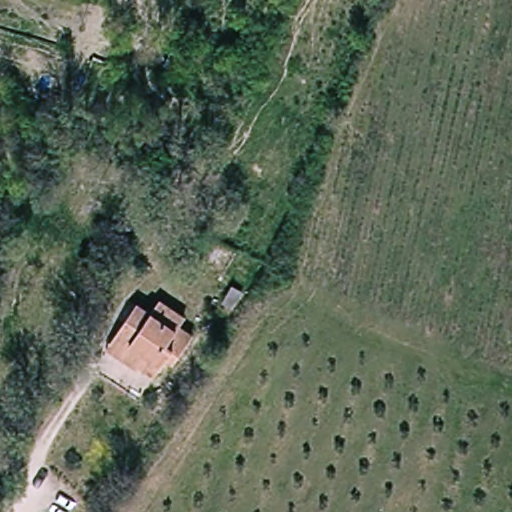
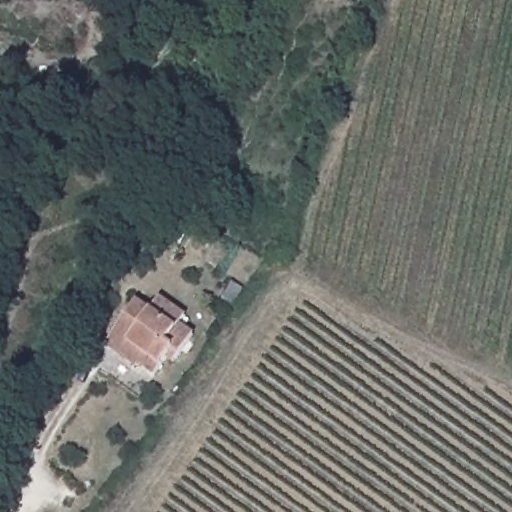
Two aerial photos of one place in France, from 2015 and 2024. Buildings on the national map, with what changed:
unchanged [(113,343),(126,320),(136,304),(151,313),(160,301),(184,316),(178,326),(191,334),(174,362),(165,358),(153,378),(136,368),(108,352),(113,343)]

